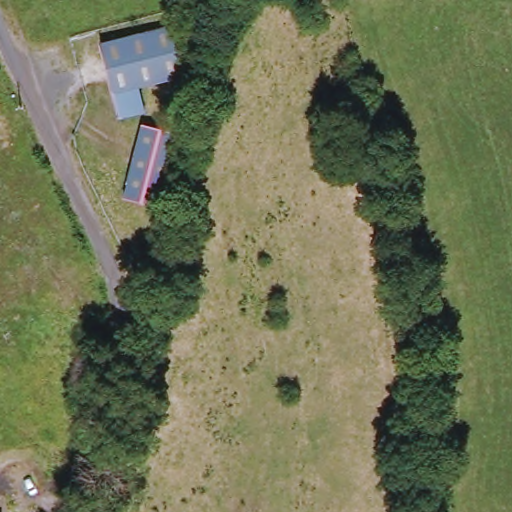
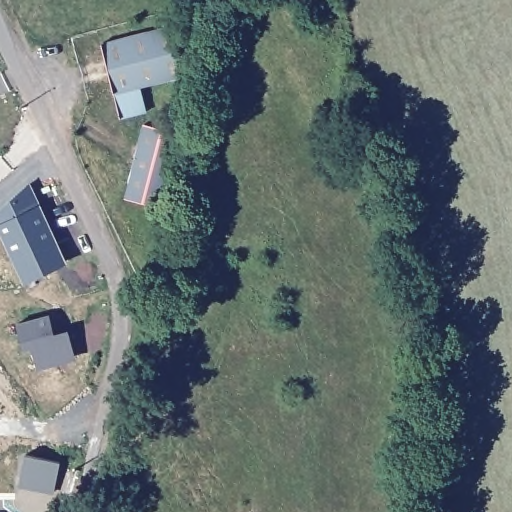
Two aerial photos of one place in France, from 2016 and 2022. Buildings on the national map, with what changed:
unchanged [(144,88),(148,114),(123,121),(102,46),(178,25),(189,76),(144,88)]
unchanged [(160,209),(124,201),(140,127),(176,134),(160,209)]
new [(0,230),(0,211),(31,183),(41,204),(68,263),(25,283),(0,230)]
new [(33,348),(26,350),(19,323),(49,314),(56,334),(70,329),(76,359),(39,369),(33,348)]
new [(53,495),(20,489),(25,458),(60,464),(53,495)]

